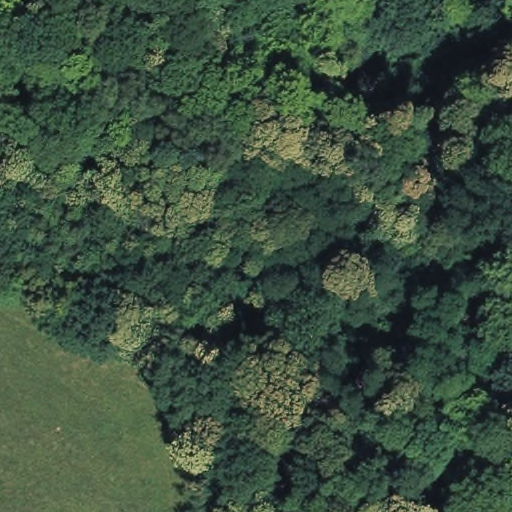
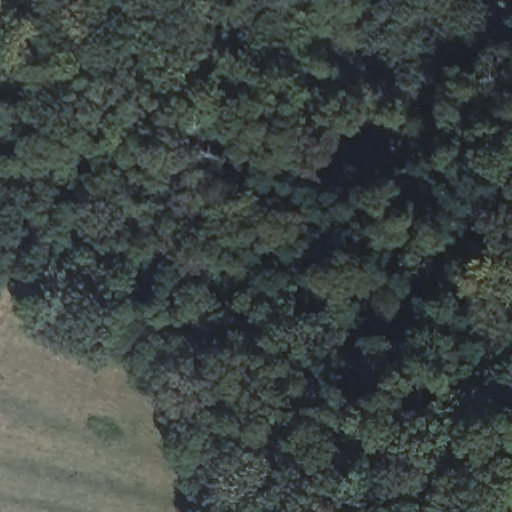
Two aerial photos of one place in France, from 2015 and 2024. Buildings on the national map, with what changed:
unchanged [(123,213),(115,223),(101,215),(110,203),(123,213)]

